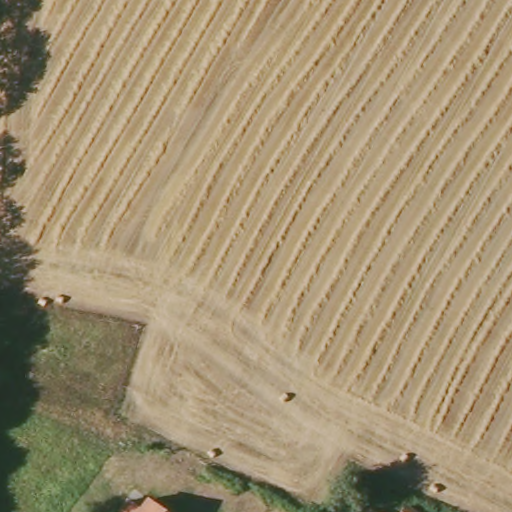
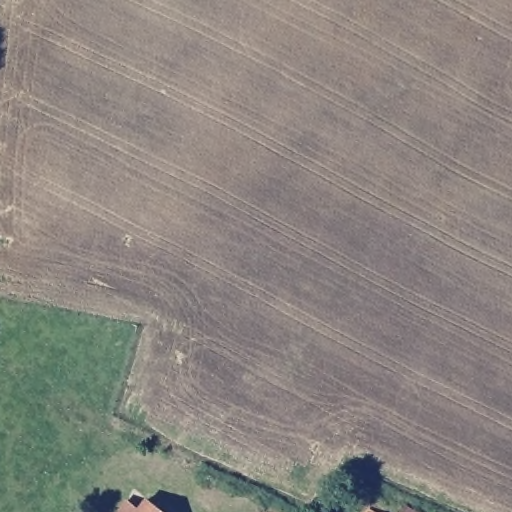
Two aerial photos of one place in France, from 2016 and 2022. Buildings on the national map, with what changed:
unchanged [(131,512),(140,493),(165,512),(131,512)]
unchanged [(424,512),(398,512),(407,501),(424,512)]

